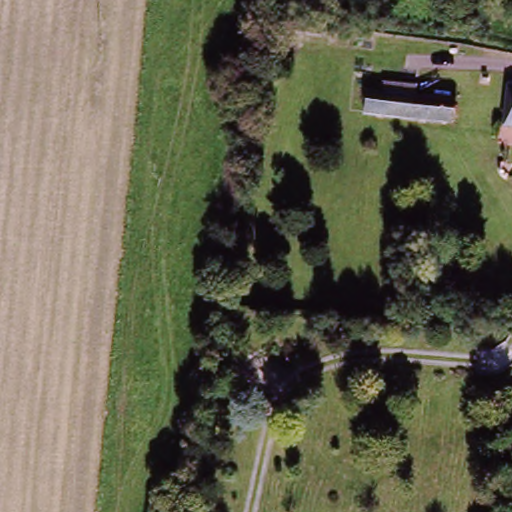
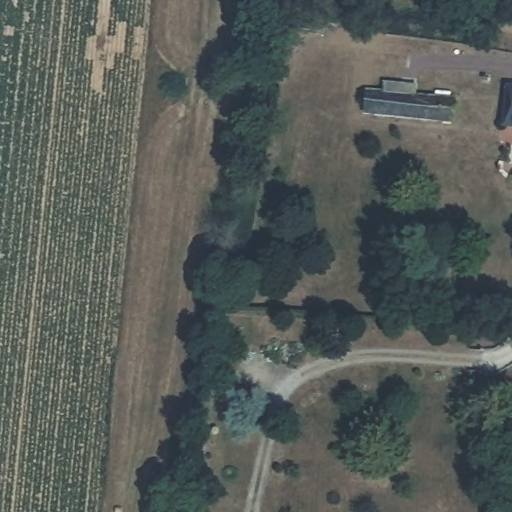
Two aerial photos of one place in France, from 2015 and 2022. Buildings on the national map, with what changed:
unchanged [(300,33),(322,38),(321,48),(298,44),(300,33)]
unchanged [(506,123),(511,87),(512,87),(512,123),(506,123)]
unchanged [(377,115),(380,92),(465,104),(462,127),(377,115)]

